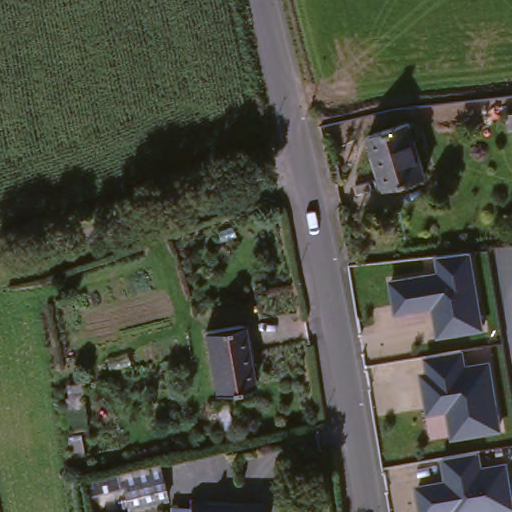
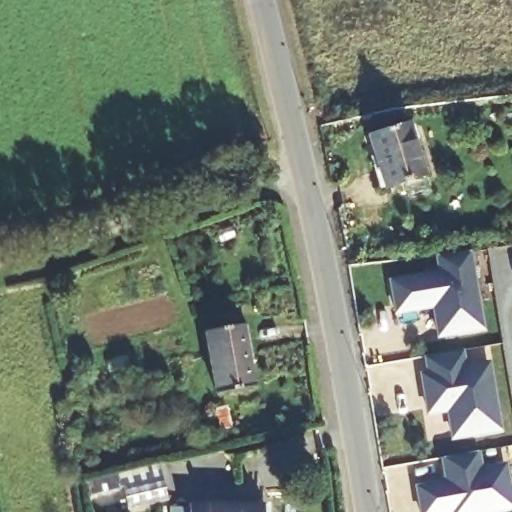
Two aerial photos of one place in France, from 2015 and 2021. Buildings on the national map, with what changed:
unchanged [(507,128),(505,112),(512,111),(512,127),(507,128)]
unchanged [(383,187),(367,133),(407,121),(424,175),(383,187)]
unchanged [(484,328),(437,335),(432,307),(394,313),(389,279),(437,270),(435,257),(471,252),(484,328)]
unchanged [(216,394),(207,332),(244,326),(254,387),(216,394)]
unchanged [(451,438),(447,413),(426,417),(418,372),(424,372),(422,357),(462,351),(464,367),(488,363),(499,431),(451,438)]
unchanged [(69,428),(67,398),(71,397),(69,382),(81,381),(87,426),(69,428)]
unchanged [(421,512),(416,486),(443,481),(439,459),(477,452),(480,467),(502,463),(511,509),(491,512),(421,512)]
unchanged [(125,509),(122,483),(117,485),(115,476),(159,466),(166,499),(125,509)]
unchanged [(264,505),(264,512),(189,512),(189,502),(264,505)]

